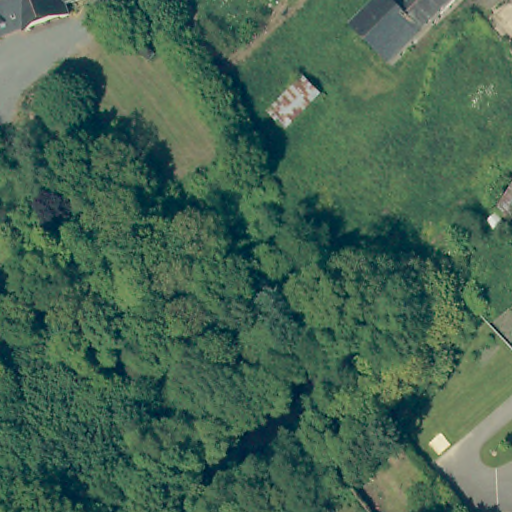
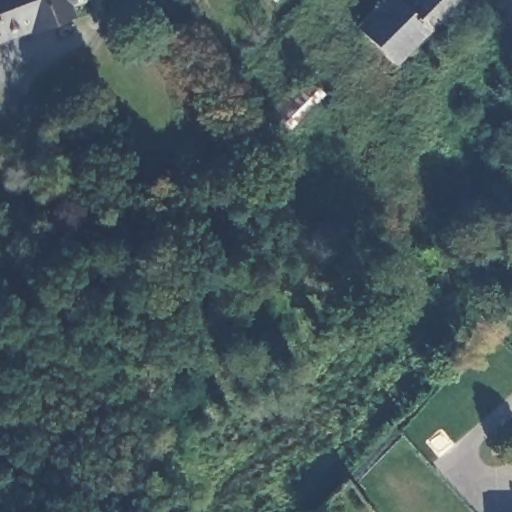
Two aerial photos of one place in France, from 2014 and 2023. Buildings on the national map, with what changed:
unchanged [(65,9),(70,21),(0,42),(0,0),(87,0),(88,2),(65,9)]
unchanged [(356,25),(384,0),(463,0),(390,63),(356,25)]
unchanged [(308,79),(327,100),(293,130),(272,110),(308,79)]
unchanged [(509,213),(496,197),(512,177),(512,211),(509,213)]

